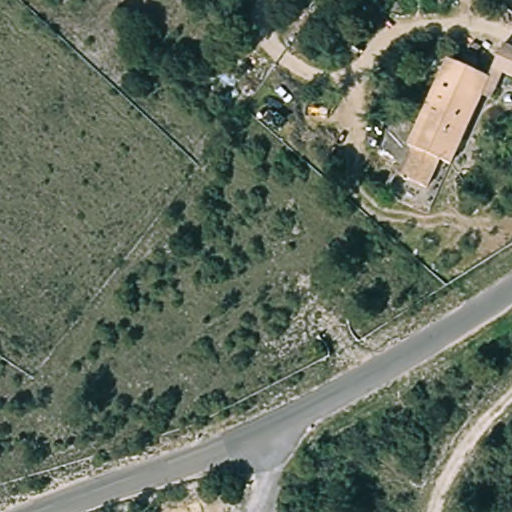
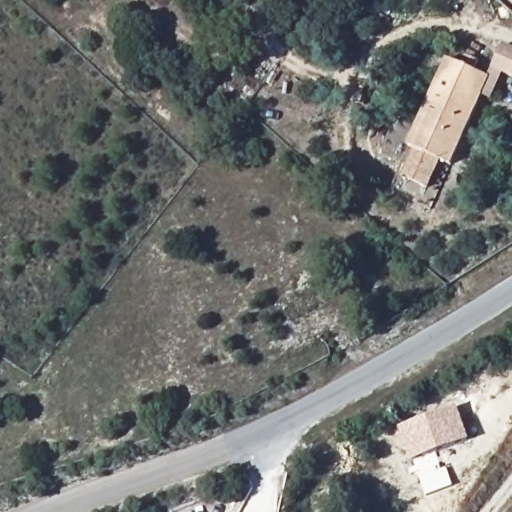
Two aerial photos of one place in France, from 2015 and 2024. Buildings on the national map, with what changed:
unchanged [(512,50),(512,80),(497,72),(510,49),(512,50)]
unchanged [(412,141),(407,138),(452,58),(465,65),(471,53),(483,61),(478,71),(494,80),(448,162),(437,156),(423,182),(397,169),(412,141)]
new [(412,461),(399,426),(457,405),(470,440),(412,461)]

